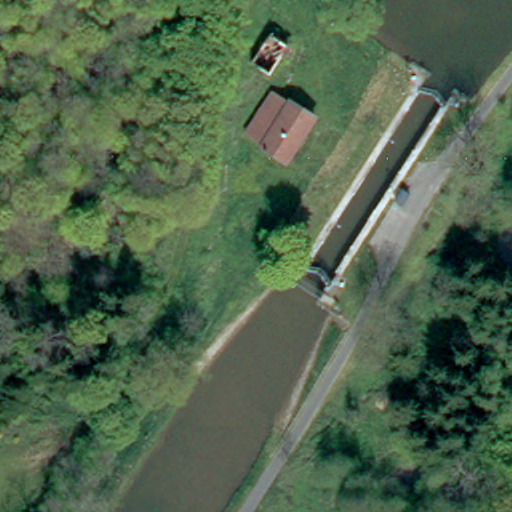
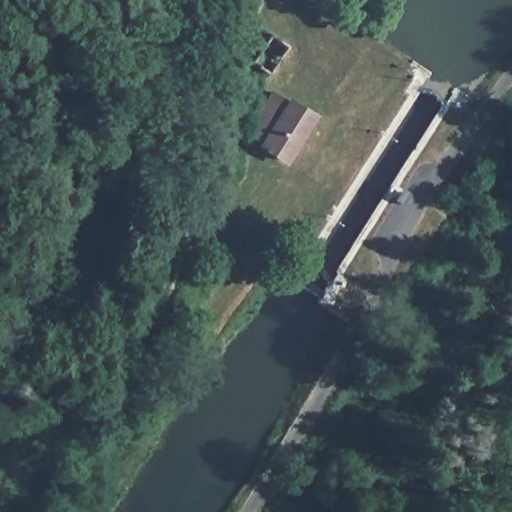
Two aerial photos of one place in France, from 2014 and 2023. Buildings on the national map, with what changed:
unchanged [(269,40),(286,53),(268,79),(250,66),(269,40)]
unchanged [(287,165),(267,151),(273,143),(256,131),(278,98),(295,111),(300,104),(320,117),(287,165)]
unchanged [(446,204),(451,196),(460,202),(455,210),(446,204)]

